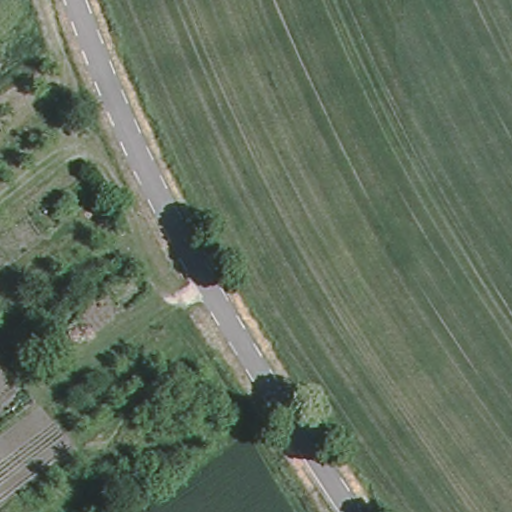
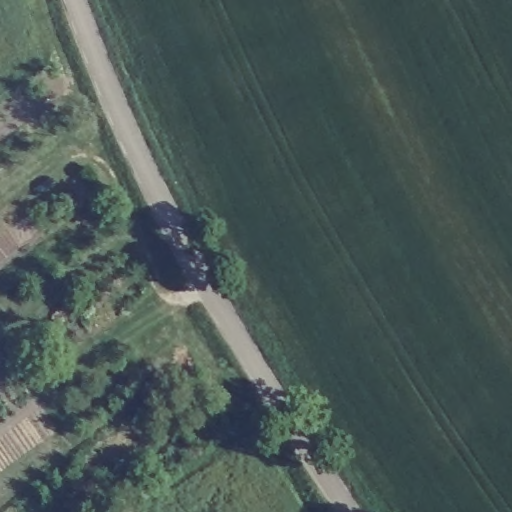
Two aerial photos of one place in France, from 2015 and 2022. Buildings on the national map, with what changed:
[]

